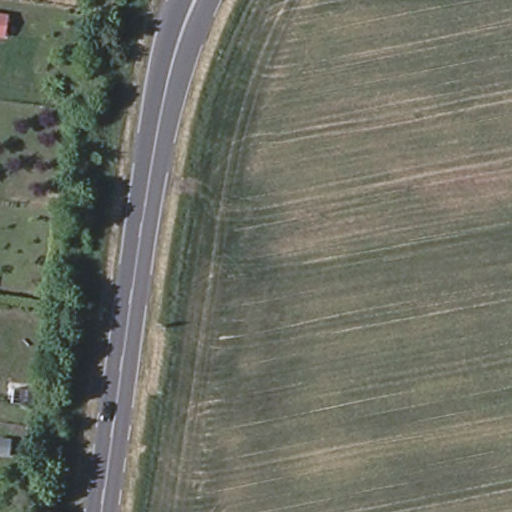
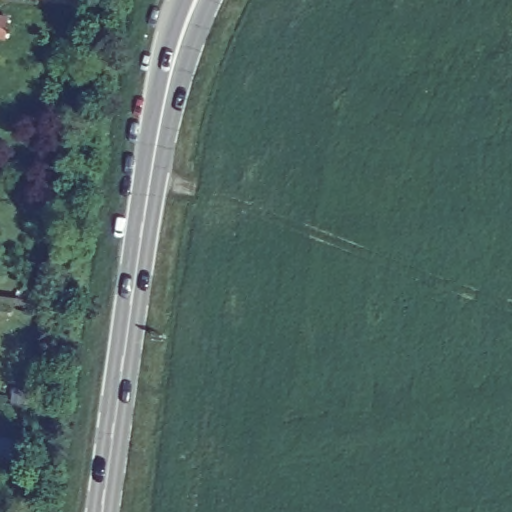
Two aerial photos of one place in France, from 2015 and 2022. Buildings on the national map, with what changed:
[]

